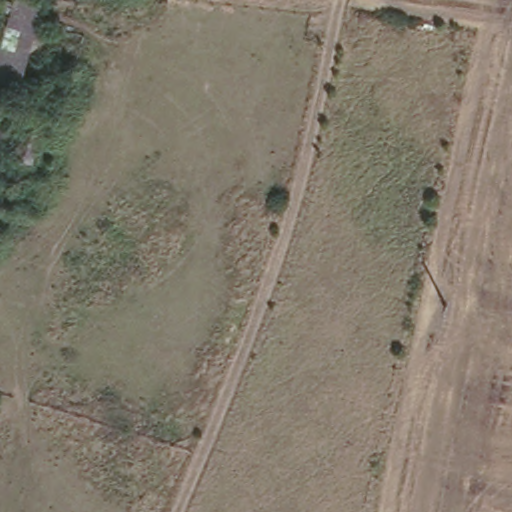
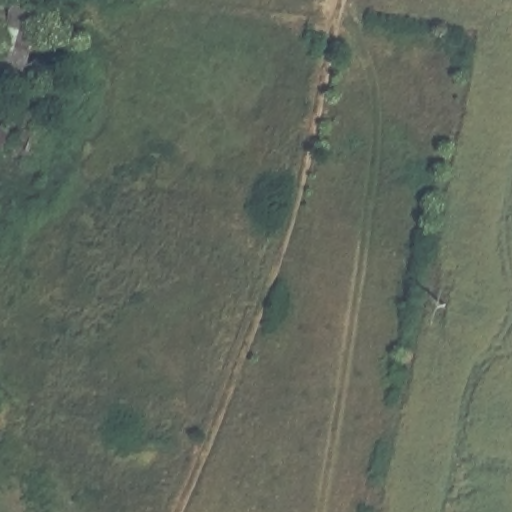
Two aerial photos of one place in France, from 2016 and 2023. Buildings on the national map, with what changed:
unchanged [(9,92),(0,90),(0,17),(5,19),(10,0),(40,0),(9,92)]

